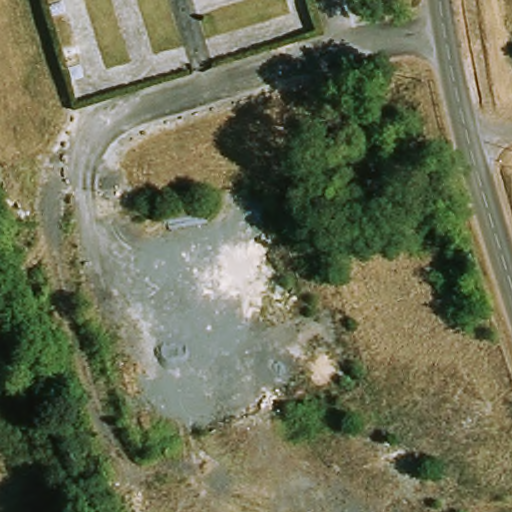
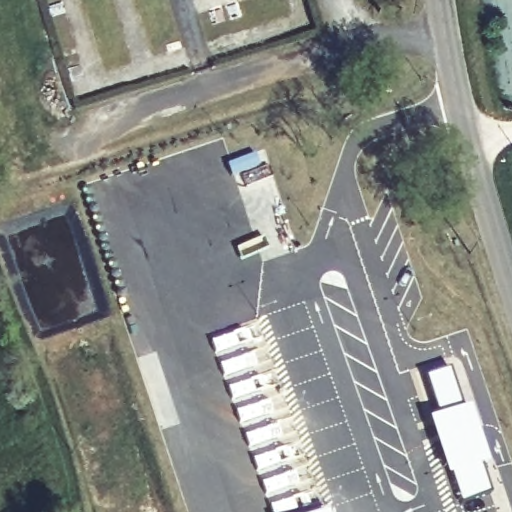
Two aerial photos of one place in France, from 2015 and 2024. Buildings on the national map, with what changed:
new [(437,417),(425,377),(448,370),(461,408),(470,406),(487,463),(481,466),(490,493),(460,505),(450,476),(445,477),(427,421),(437,417)]
new [(327,512),(321,512),(326,510),(327,512)]

